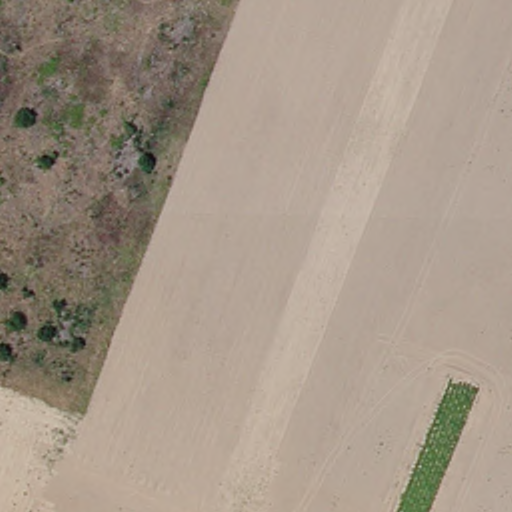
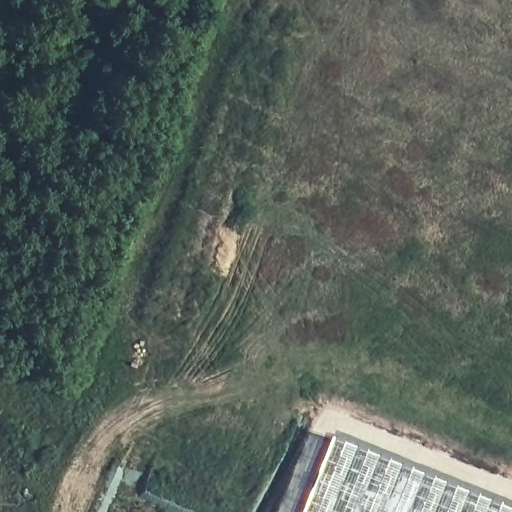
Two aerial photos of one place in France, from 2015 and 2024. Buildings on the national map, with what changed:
new [(512,505),(512,512),(303,512),(333,437),(512,505)]

